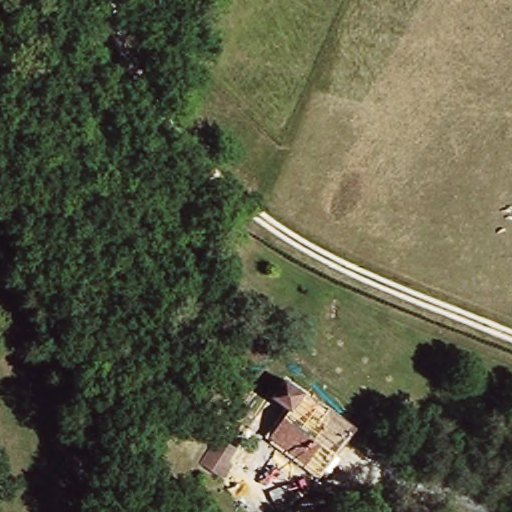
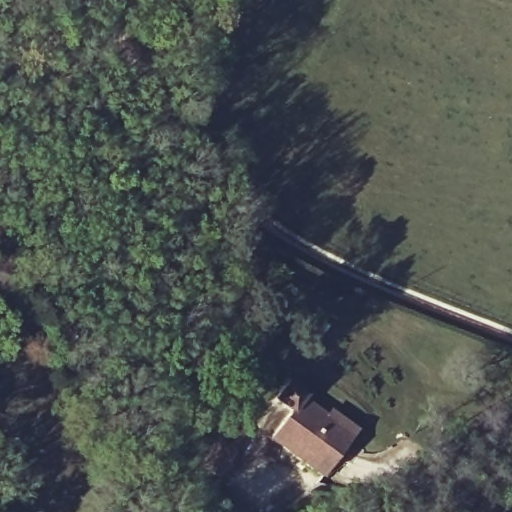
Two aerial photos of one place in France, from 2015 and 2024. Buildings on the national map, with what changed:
unchanged [(269,440),(289,412),(272,400),(285,384),(302,396),(300,400),(322,418),(328,410),(355,430),(345,443),(320,478),(269,440)]
unchanged [(215,435),(232,448),(230,451),(223,462),(227,465),(217,478),(196,462),(211,441),(215,435)]

